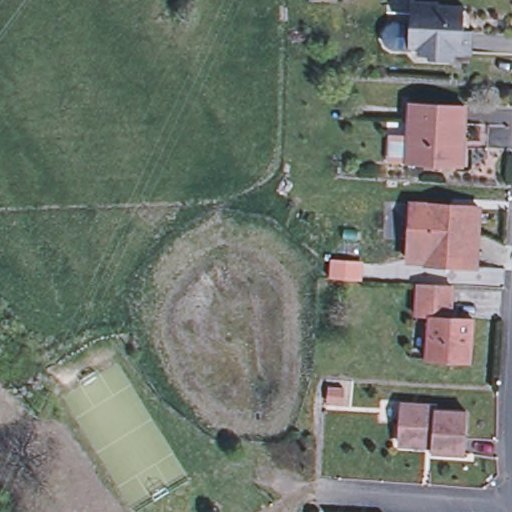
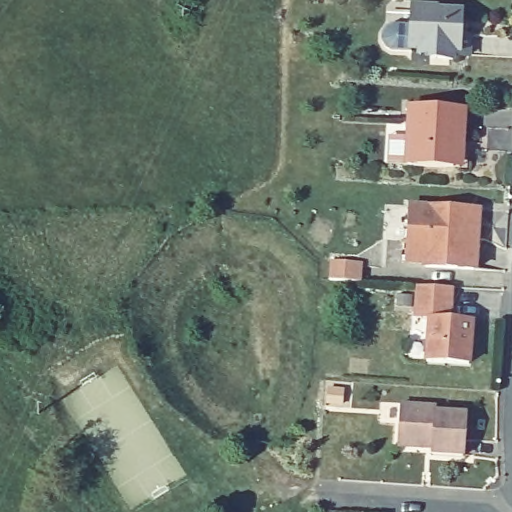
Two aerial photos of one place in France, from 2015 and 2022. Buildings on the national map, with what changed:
unchanged [(437,7),(437,10),(463,12),(462,36),(470,36),(468,56),(453,55),(453,61),(431,59),(432,49),(412,47),(415,6),(437,7)]
unchanged [(455,167),(409,165),(412,104),(465,108),(463,143),(462,168),(455,167)]
unchanged [(452,207),(452,210),(459,211),(463,208),(480,208),(478,268),(428,265),(428,263),(410,261),(412,205),(452,207)]
unchanged [(417,316),(420,285),(453,287),(452,304),(446,304),(445,318),(474,320),(470,364),(428,360),(432,317),(417,316)]
unchanged [(437,405),(437,409),(468,411),(465,455),(434,452),(435,443),(399,440),(402,402),(437,405)]

